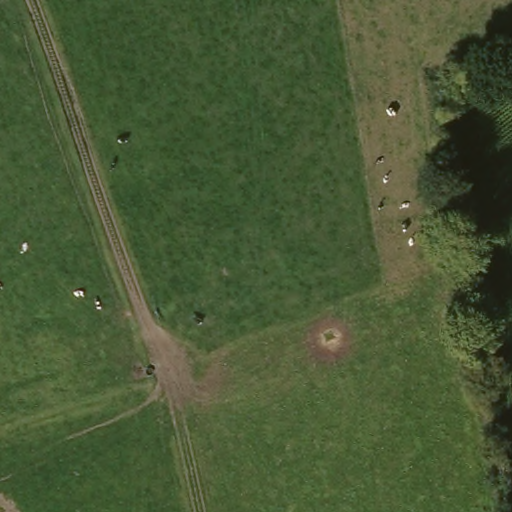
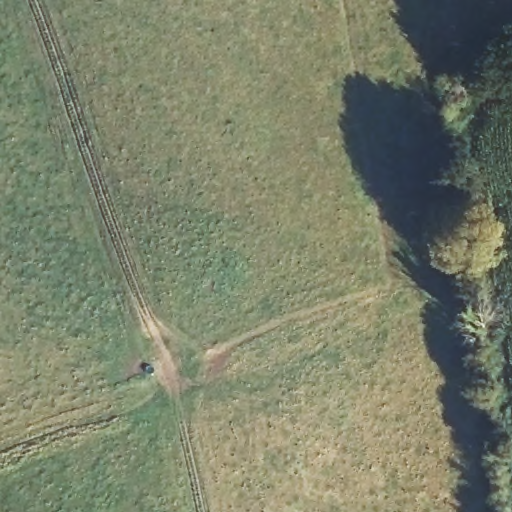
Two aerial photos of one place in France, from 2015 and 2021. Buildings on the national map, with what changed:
[]

